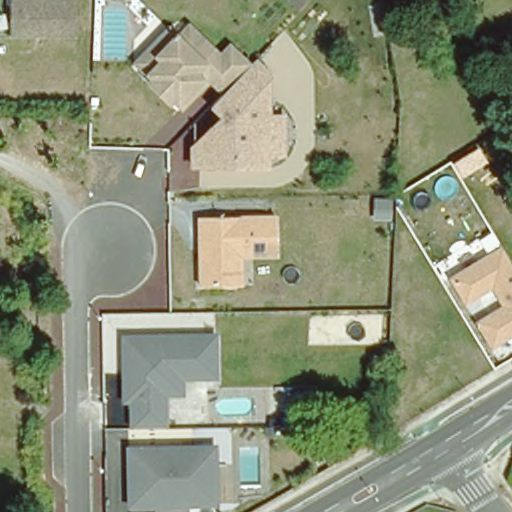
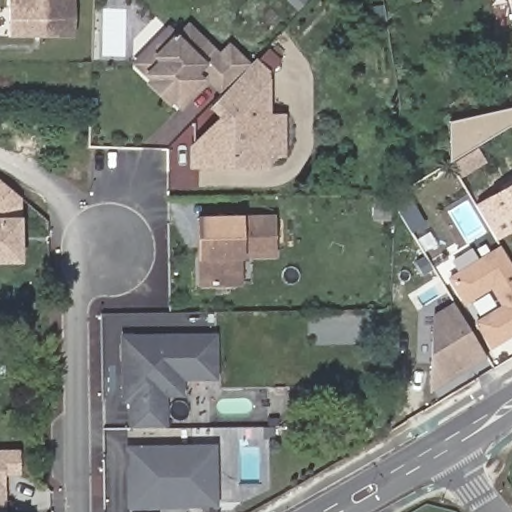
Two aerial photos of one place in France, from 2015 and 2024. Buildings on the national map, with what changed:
unchanged [(76,0),(75,44),(9,42),(11,0),(76,0)]
unchanged [(222,86),(208,72),(204,77),(200,73),(176,97),(145,67),(158,53),(148,43),(167,23),(177,32),(189,21),(219,50),(229,40),(248,59),(222,86)]
unchanged [(258,57),(270,67),(271,112),(289,114),(288,157),(274,158),(272,170),(189,169),(187,146),(217,118),(207,106),(222,86),(248,59),(258,57)]
new [(453,162),(455,120),(512,108),(512,128),(480,147),(453,162)]
new [(24,263),(0,263),(0,179),(10,188),(22,197),(22,216),(24,263)]
new [(497,240),(475,204),(488,196),(512,180),(512,231),(508,233),(497,240)]
new [(425,225),(410,234),(395,207),(410,199),(425,225)]
unchanged [(277,215),(278,257),(245,257),(245,287),(200,287),(197,217),(277,215)]
unchanged [(512,338),(495,348),(472,321),(500,303),(493,290),(466,305),(449,276),(502,246),(512,263),(512,338)]
new [(428,392),(432,313),(453,302),(486,357),(428,392)]
unchanged [(219,380),(186,380),(185,398),(169,398),(169,427),(129,427),(128,403),(119,403),(121,332),(220,332),(219,380)]
unchanged [(130,503),(130,447),(195,447),(216,447),(216,465),(216,504),(130,503)]
new [(10,449),(12,512),(0,512),(0,449),(10,449)]

